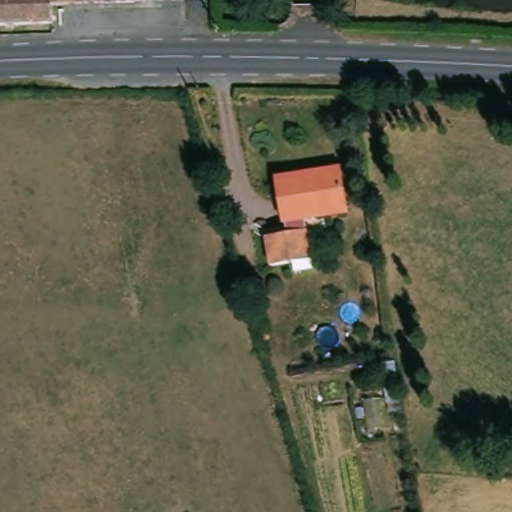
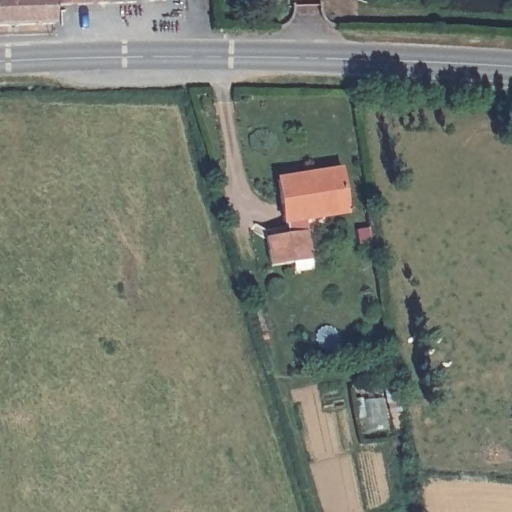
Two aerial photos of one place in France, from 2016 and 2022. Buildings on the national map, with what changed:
unchanged [(0,23),(0,0),(51,0),(51,2),(52,14),(52,22),(0,23)]
unchanged [(51,2),(51,0),(133,0),(51,2)]
unchanged [(316,258),(318,267),(296,271),(295,262),(269,266),(265,238),(288,234),(281,177),(341,169),(347,211),(308,218),(311,247),(313,259),(316,258)]

